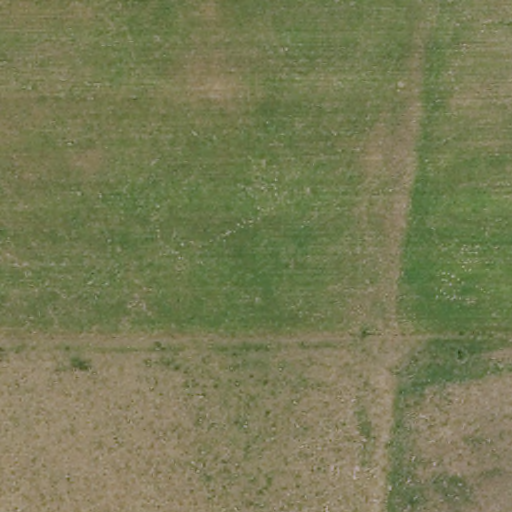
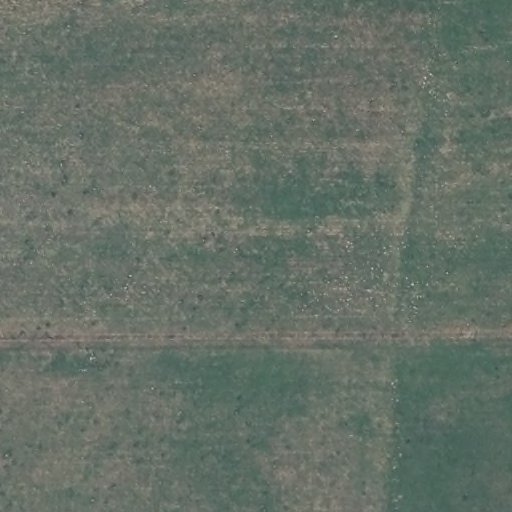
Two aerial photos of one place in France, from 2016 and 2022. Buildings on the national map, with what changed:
[]

